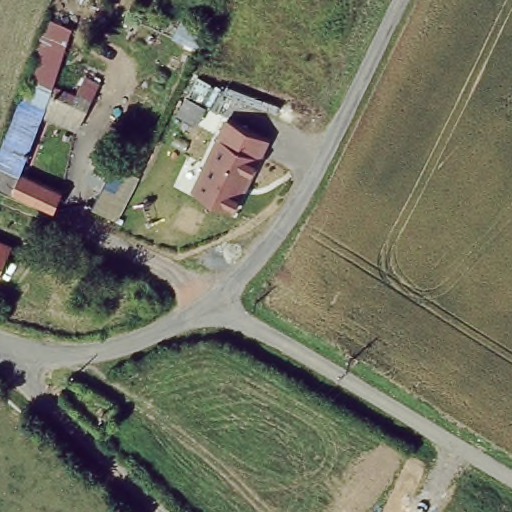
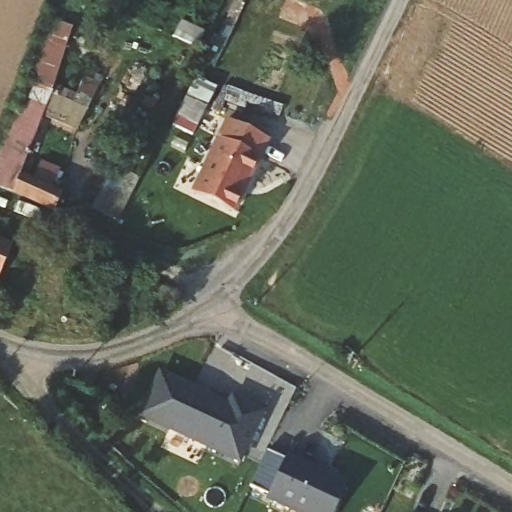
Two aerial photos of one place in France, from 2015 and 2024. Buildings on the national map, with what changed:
unchanged [(191,54),(125,21),(135,0),(201,0),(216,7),(191,54)]
unchanged [(65,20),(50,60),(41,85),(20,74),(42,11),(65,20)]
unchanged [(11,175),(53,192),(47,206),(0,185),(0,128),(20,74),(41,85),(50,60),(72,67),(78,53),(91,58),(76,102),(75,106),(67,126),(33,115),(11,175)]
new [(193,135),(172,125),(195,77),(216,87),(282,106),(277,117),(231,96),(224,111),(208,104),(193,135)]
unchanged [(271,139),(237,214),(190,192),(227,116),(271,139)]
unchanged [(141,177),(118,222),(92,208),(115,162),(141,177)]
unchanged [(0,279),(0,236),(15,243),(0,279)]
new [(158,370),(229,402),(232,395),(266,411),(240,465),(136,416),(158,370)]
new [(248,490),(267,450),(286,460),(288,455),(348,483),(334,512),(297,512),(248,490)]

